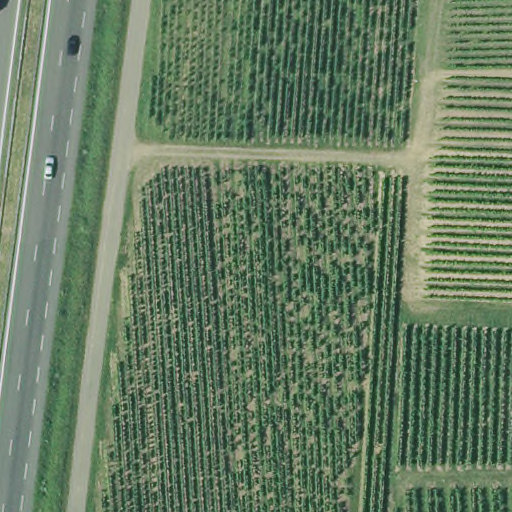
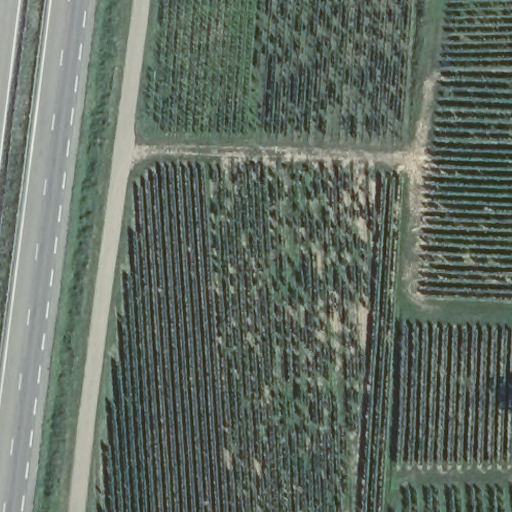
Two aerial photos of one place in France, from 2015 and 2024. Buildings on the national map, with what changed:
[]

